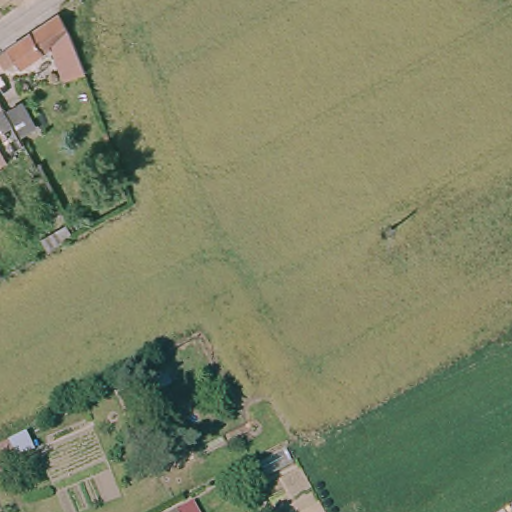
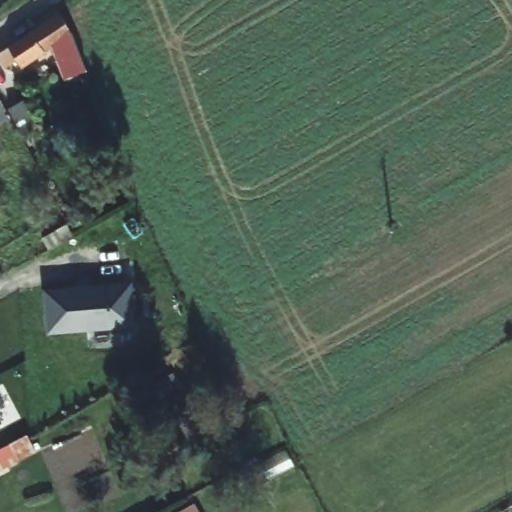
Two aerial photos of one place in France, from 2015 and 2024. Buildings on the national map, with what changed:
unchanged [(81,71),(59,79),(47,47),(16,67),(11,61),(0,68),(0,48),(52,12),(67,34),(81,71)]
unchanged [(23,137),(7,107),(22,99),(39,128),(23,137)]
unchanged [(26,147),(17,151),(0,122),(0,100),(21,138),(26,147)]
unchanged [(41,237),(67,223),(72,233),(46,248),(41,237)]
new [(42,290),(134,281),(137,327),(47,334),(42,290)]
new [(0,423),(0,418),(2,422),(0,423)]
unchanged [(0,464),(0,448),(15,441),(21,453),(0,464)]

